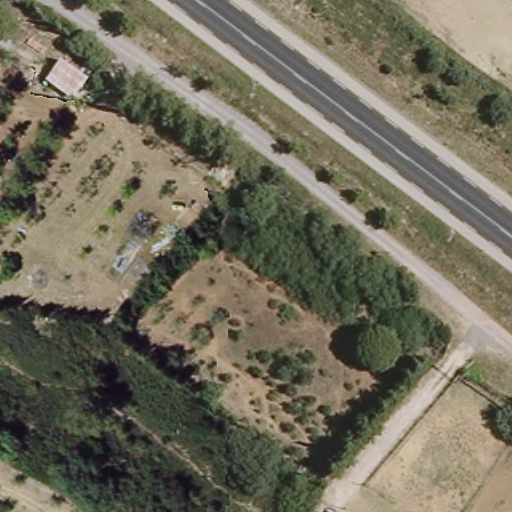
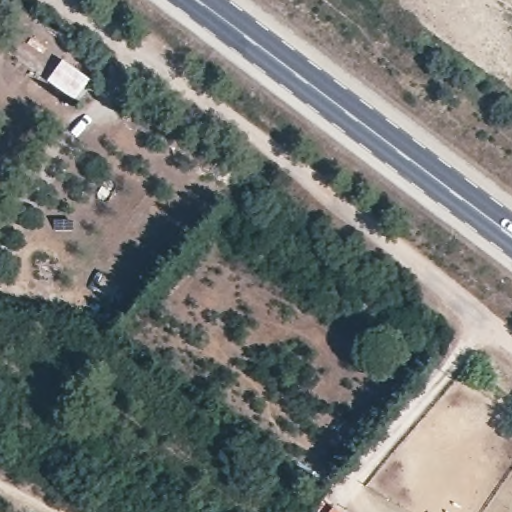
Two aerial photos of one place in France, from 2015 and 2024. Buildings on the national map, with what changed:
unchanged [(75,102),(45,80),(66,59),(94,79),(75,102)]
unchanged [(340,512),(336,512),(338,510),(340,512)]

